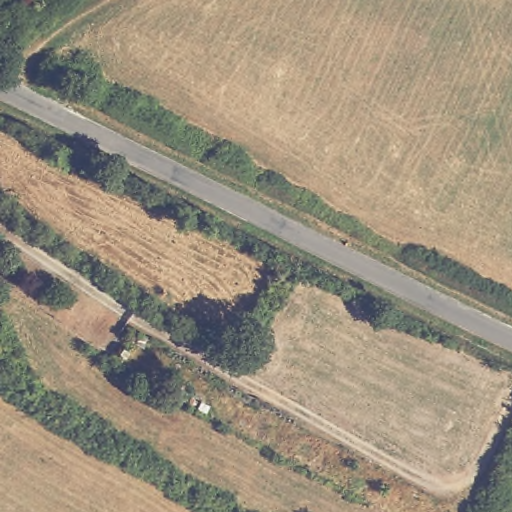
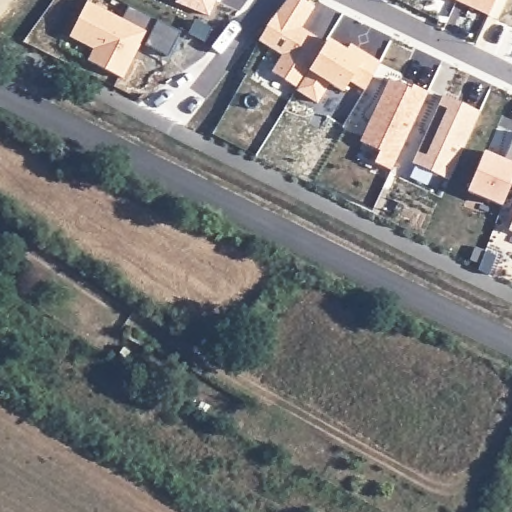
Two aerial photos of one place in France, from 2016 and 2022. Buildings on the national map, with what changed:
new [(209,16),(176,2),(177,0),(215,0),(209,16)]
new [(285,0),(302,0),(313,8),(300,29),(310,35),(325,44),(297,88),(272,72),(282,56),(258,40),(266,25),(285,0)]
new [(487,16),(453,0),(495,0),(487,16)]
new [(122,79),(88,61),(94,49),(69,37),(87,2),(146,32),(137,50),(134,56),(122,79)]
new [(130,6),(180,32),(167,55),(145,44),(150,33),(146,32),(122,20),(130,6)]
new [(325,44),(327,40),(346,52),(350,45),(365,54),(379,63),(365,90),(350,81),(343,92),(329,83),(317,103),(296,90),(297,88),(325,44)]
new [(374,119),(370,117),(388,79),(410,90),(412,86),(427,93),(391,170),(375,163),(380,152),(362,143),(374,119)]
new [(444,96),(480,112),(449,180),(413,163),(444,96)]
new [(484,152),(503,160),(512,139),(512,179),(501,206),(467,192),(484,152)]

